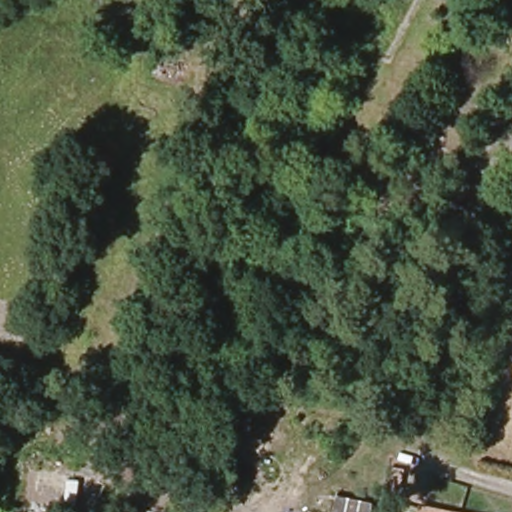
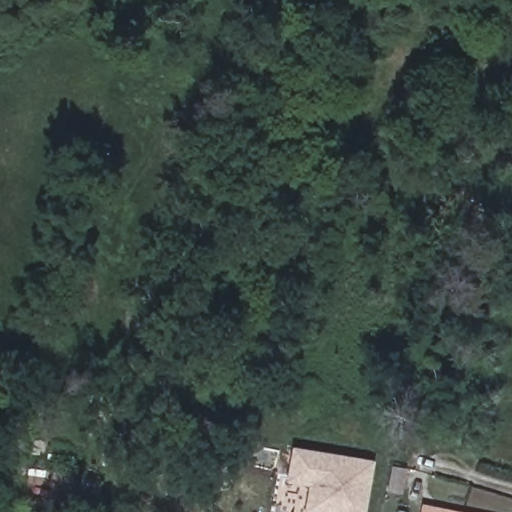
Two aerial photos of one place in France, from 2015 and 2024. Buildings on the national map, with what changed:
new [(283,483),(289,446),(373,460),(364,512),(301,512),(306,487),(283,483)]
demolished [(433,512),(425,512),(426,510),(433,512)]
unchanged [(422,512),(422,511),(426,512),(422,512)]

